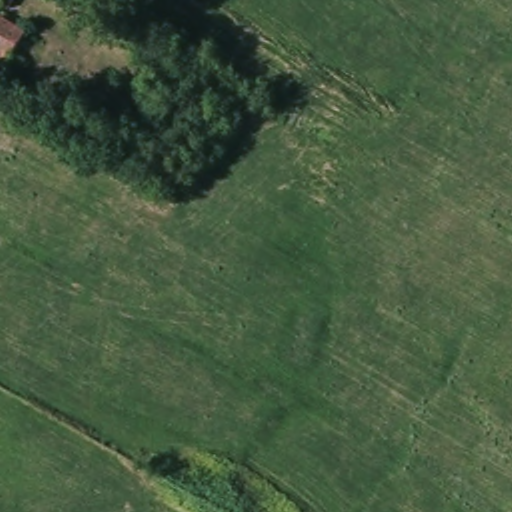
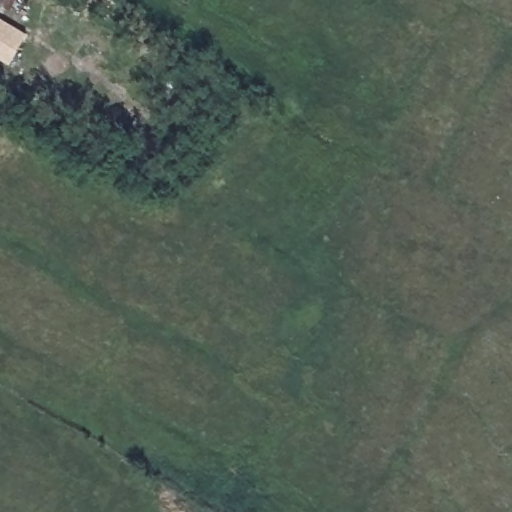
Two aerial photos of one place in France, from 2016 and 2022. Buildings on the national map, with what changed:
unchanged [(0,10),(0,0),(13,0),(6,13),(0,10)]
unchanged [(6,63),(0,59),(0,20),(23,34),(6,63)]

